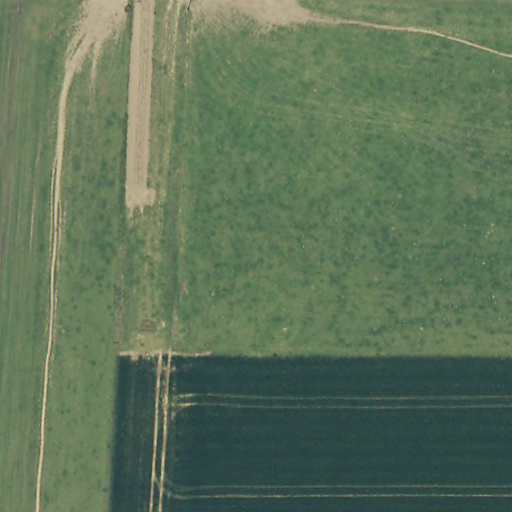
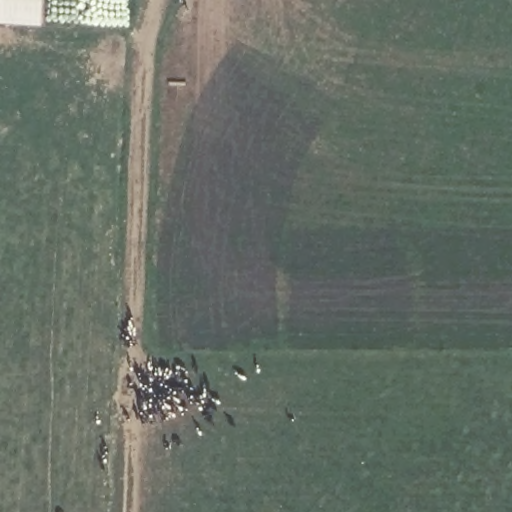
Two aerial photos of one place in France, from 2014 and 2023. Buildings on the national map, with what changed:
new [(44,24),(0,21),(0,0),(45,0),(44,24)]

